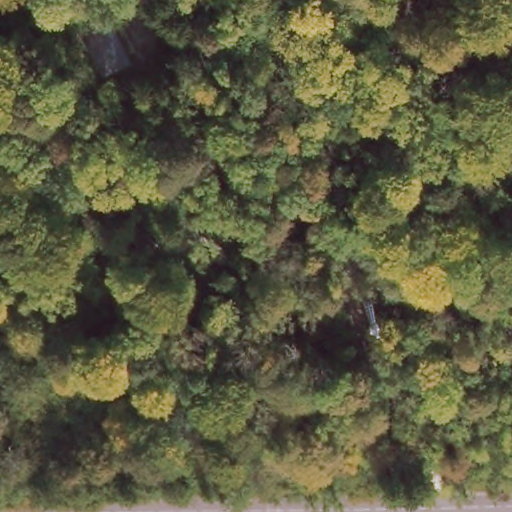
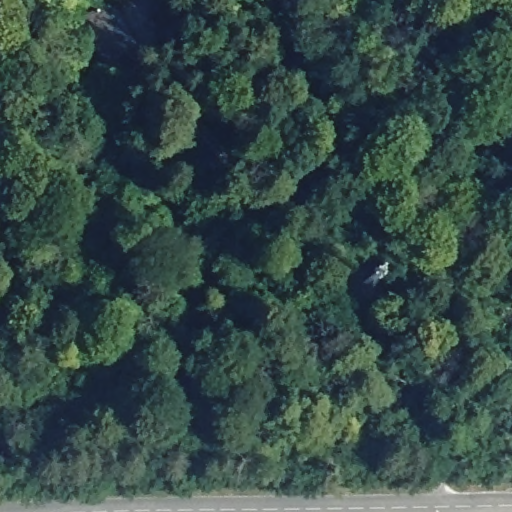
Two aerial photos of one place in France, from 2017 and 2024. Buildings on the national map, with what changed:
unchanged [(83,22),(102,11),(125,50),(105,60),(83,22)]

